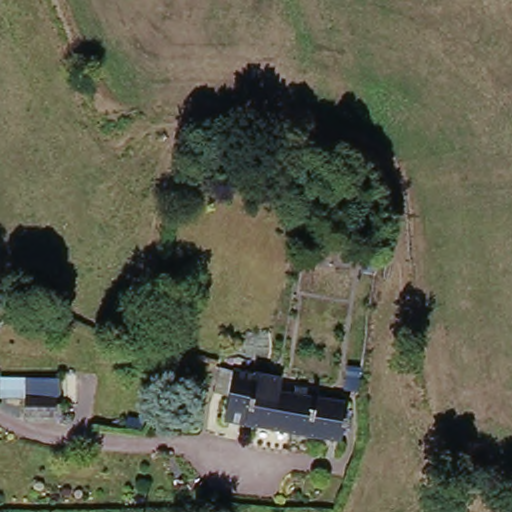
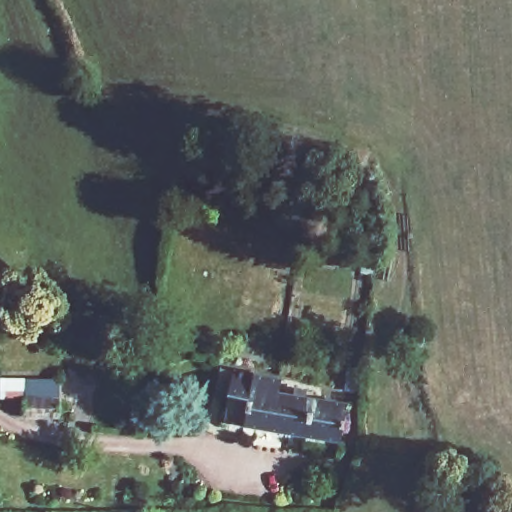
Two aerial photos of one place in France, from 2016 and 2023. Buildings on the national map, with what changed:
unchanged [(348,451),(230,430),(235,406),(220,404),(224,379),(238,383),(240,380),(285,385),(290,387),(288,400),(354,412),(348,451)]
unchanged [(66,385),(65,423),(30,424),(30,406),(6,405),(6,384),(66,385)]

